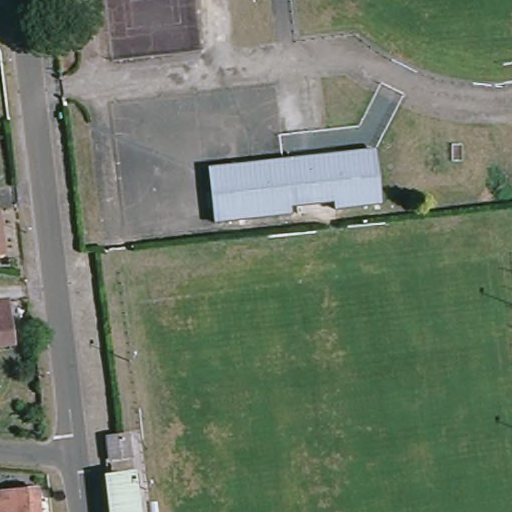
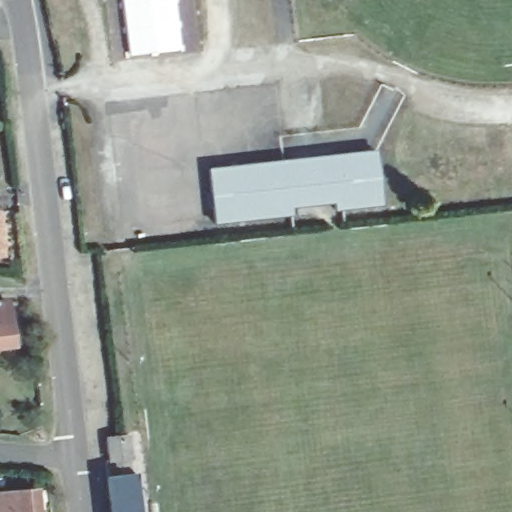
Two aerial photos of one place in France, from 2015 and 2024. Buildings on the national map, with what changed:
new [(182,50),(129,56),(122,0),(176,0),(182,50)]
unchanged [(208,167),(376,150),(382,205),(335,209),(334,202),(290,206),(292,214),(214,222),(208,167)]
unchanged [(4,259),(0,260),(0,226),(4,259)]
unchanged [(4,341),(0,341),(0,310),(4,341)]
unchanged [(127,434),(130,455),(107,458),(104,437),(127,434)]
unchanged [(140,512),(126,512),(122,478),(135,472),(140,512)]
unchanged [(126,512),(103,512),(100,481),(122,478),(126,512)]
unchanged [(30,488),(32,512),(0,512),(0,492),(30,488)]

